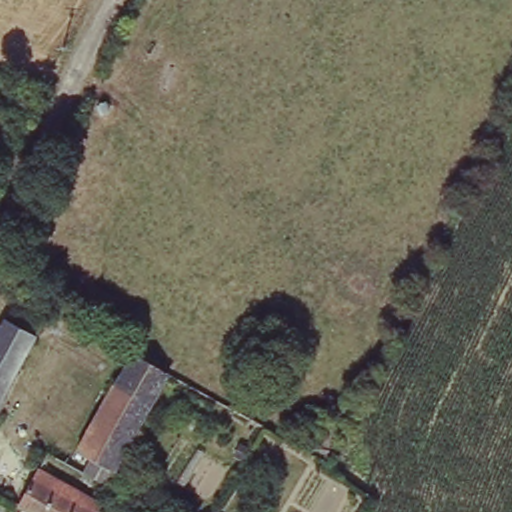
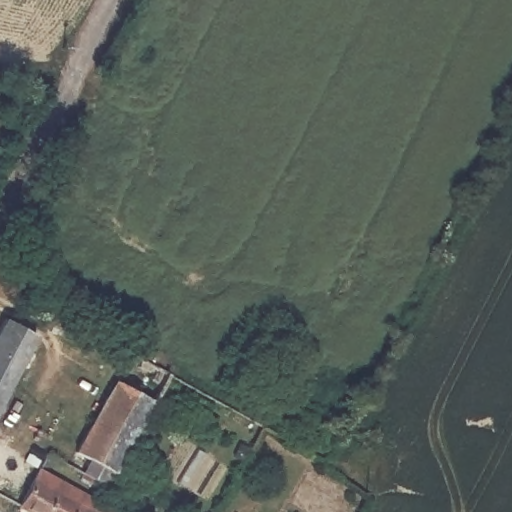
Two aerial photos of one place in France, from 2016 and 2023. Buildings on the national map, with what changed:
unchanged [(34,331),(0,400),(0,338),(10,319),(34,331)]
unchanged [(75,452),(129,353),(171,376),(117,475),(75,452)]
unchanged [(22,507),(35,481),(95,512),(100,503),(115,512),(31,512),(22,507)]

